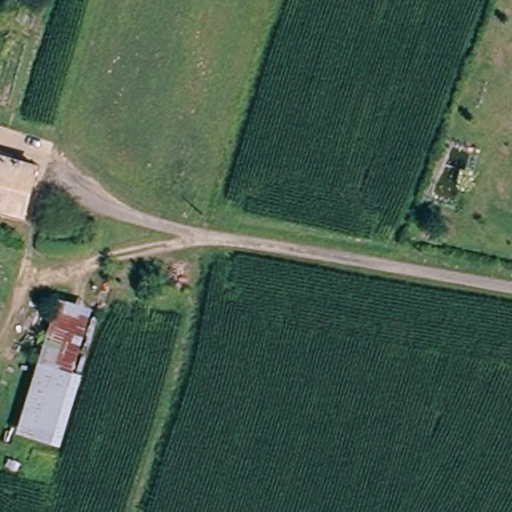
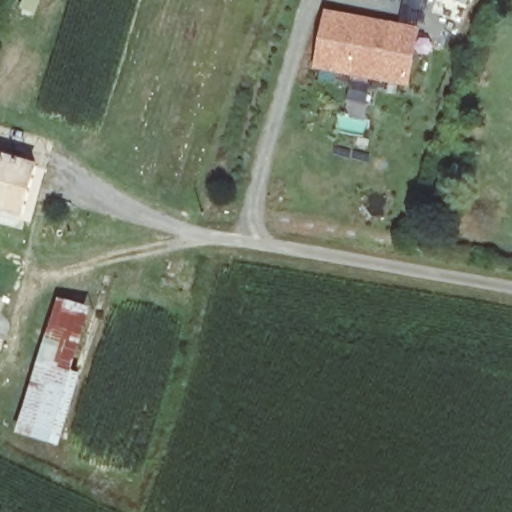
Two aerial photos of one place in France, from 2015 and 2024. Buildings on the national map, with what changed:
new [(466,4),(454,0),(467,0),(466,4)]
new [(324,8),(421,27),(409,88),(312,70),(324,8)]
unchanged [(26,220),(0,213),(0,156),(41,166),(26,220)]
demolished [(163,261),(196,263),(194,292),(160,292),(163,261)]
unchanged [(57,297),(92,309),(72,372),(83,375),(60,449),(15,434),(57,297)]
unchanged [(0,321),(0,298),(7,300),(0,321)]

